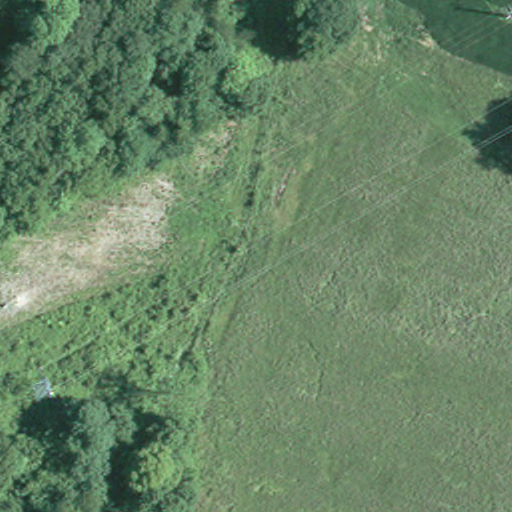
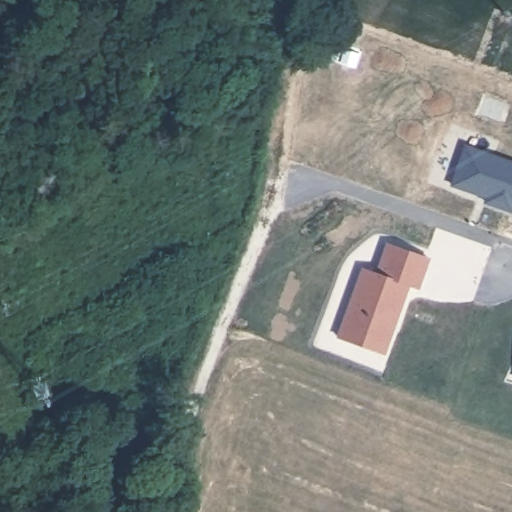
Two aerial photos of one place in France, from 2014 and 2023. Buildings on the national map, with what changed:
new [(465,146),(512,162),(512,206),(510,210),(484,201),(487,192),(480,189),(478,194),(452,184),(465,146)]
new [(416,286),(407,283),(392,320),(390,320),(388,326),(390,327),(382,352),(337,335),(362,265),(377,270),(387,241),(427,255),(416,286)]
new [(511,378),(512,375),(512,379),(511,378)]

